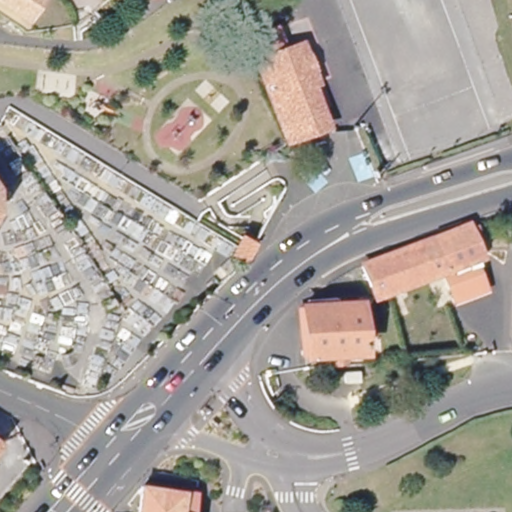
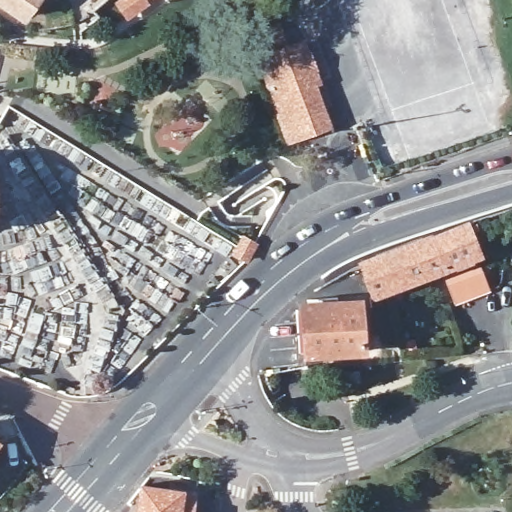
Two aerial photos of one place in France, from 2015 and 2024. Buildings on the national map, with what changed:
unchanged [(22,17),(0,3),(0,0),(33,0),(22,17)]
unchanged [(261,62),(286,53),(309,116),(286,125),(285,124),(261,62)]
unchanged [(308,129),(318,127),(321,134),(311,136),(308,129)]
unchanged [(5,190),(0,193),(0,187),(2,186),(5,190)]
unchanged [(0,218),(0,212),(3,214),(0,218)]
unchanged [(472,226),(463,229),(473,251),(463,255),(475,288),(443,299),(432,268),(371,292),(360,261),(460,220),(469,218),(472,226)]
unchanged [(509,236),(508,224),(512,224),(512,236),(509,236)]
unchanged [(233,255),(238,247),(241,242),(251,248),(247,253),(242,261),(233,255)]
unchanged [(332,362),(331,350),(304,352),(301,302),(356,298),(359,348),(342,349),(343,362),(332,362)]
unchanged [(337,377),(337,367),(352,367),(352,377),(337,377)]
unchanged [(181,487),(202,490),(197,512),(133,512),(139,482),(181,487)]

